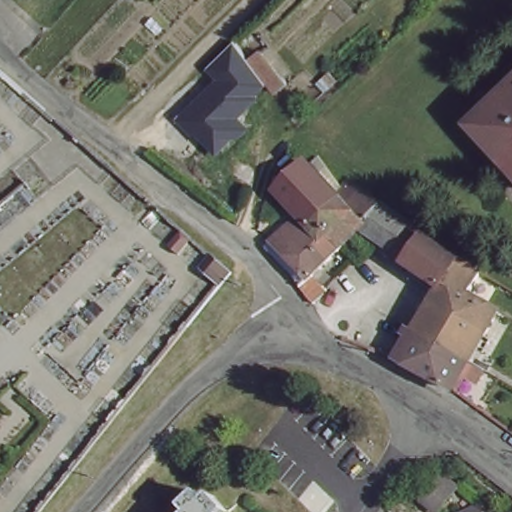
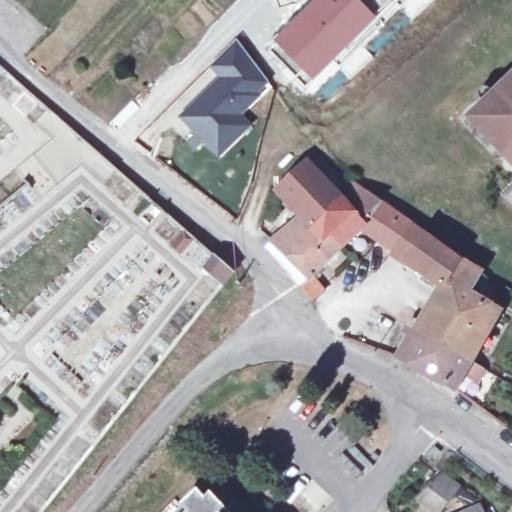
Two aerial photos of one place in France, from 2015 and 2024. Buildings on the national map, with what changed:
new [(317,0),(361,0),(379,19),(310,83),(272,43),(317,0)]
new [(392,7),(384,0),(399,0),(392,7)]
unchanged [(207,65),(233,40),(244,55),(241,58),(264,81),(251,93),(254,96),(235,116),(245,126),(216,155),(179,118),(219,77),(207,65)]
unchanged [(287,83),(274,93),(257,70),(251,61),(263,51),(268,59),(287,83)]
unchanged [(512,77),(512,170),(467,121),(512,77)]
unchanged [(252,165),(246,179),(232,174),(238,159),(252,165)]
unchanged [(310,301),(299,287),(307,280),(289,262),(271,241),(300,213),(275,188),(305,161),(335,192),(340,197),(363,222),(378,200),(397,213),(412,224),(427,234),(460,256),(454,267),(443,285),(408,261),(394,252),(379,241),(361,229),(342,247),(331,257),(315,272),(310,277),(322,290),(319,293),(310,301)]
unchanged [(192,237),(177,253),(167,245),(181,227),(192,237)]
unchanged [(454,267),(460,256),(482,269),(469,293),(499,310),(486,333),(432,304),(443,285),(454,267)]
unchanged [(417,330),(432,304),(486,333),(470,361),(417,330)]
unchanged [(485,369),(477,382),(463,375),(454,392),(425,374),(399,359),(417,330),(470,361),(485,369)]
unchanged [(435,512),(434,512),(420,500),(439,477),(454,488),(435,512)]
unchanged [(196,487),(220,512),(189,512),(179,502),(196,487)]
unchanged [(471,512),(477,509),(478,512),(471,512)]

